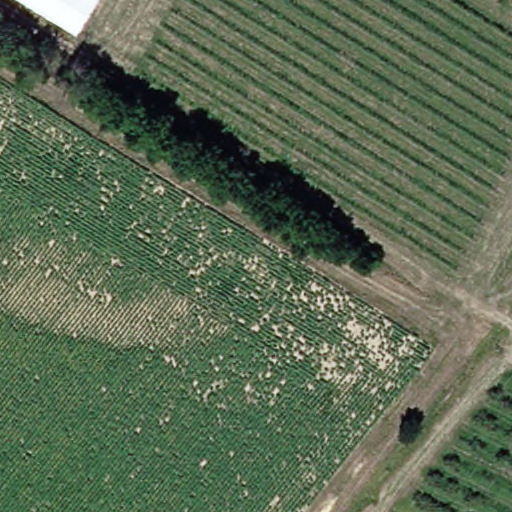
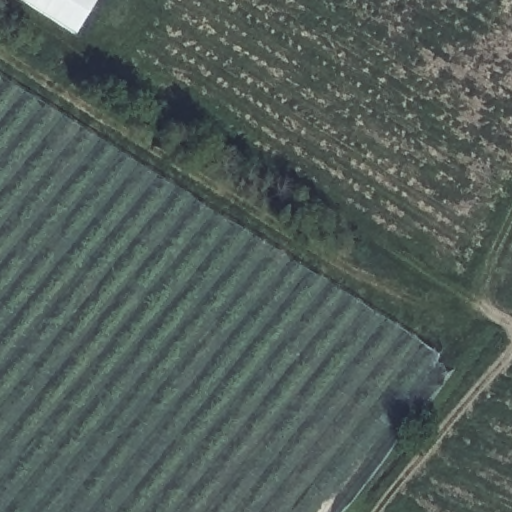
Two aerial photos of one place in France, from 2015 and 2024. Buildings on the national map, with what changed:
unchanged [(77,35),(21,0),(98,0),(77,35)]

